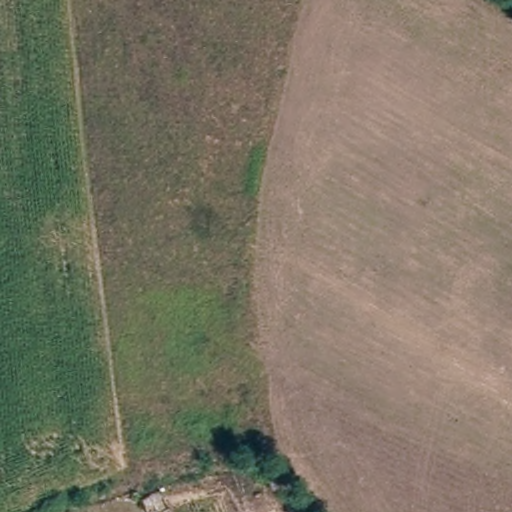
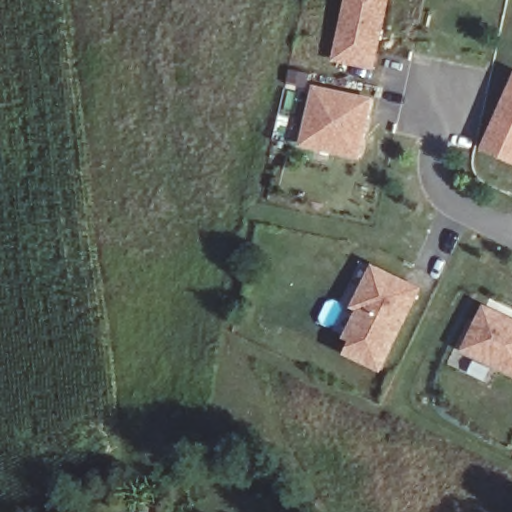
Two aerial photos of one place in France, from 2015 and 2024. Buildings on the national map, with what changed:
new [(347,0),(391,0),(375,72),(333,62),(347,0)]
new [(512,81),(512,164),(481,148),(512,81)]
new [(299,148),(313,86),(374,99),(361,161),(299,148)]
new [(344,356),(351,342),(344,341),(357,312),(352,309),(373,265),(423,289),(382,373),(344,356)]
new [(484,306),(512,318),(512,376),(462,352),(484,306)]

